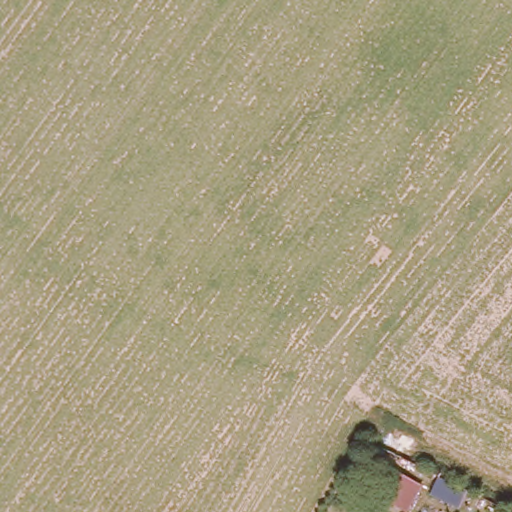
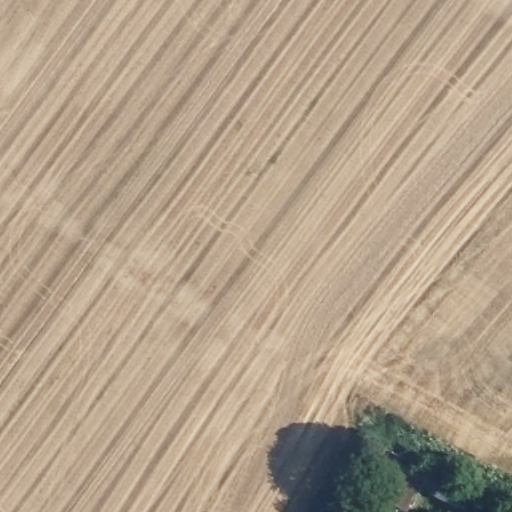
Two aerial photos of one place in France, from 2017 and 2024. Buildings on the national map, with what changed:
unchanged [(358,447),(370,456),(360,471),(348,463),(358,447)]
unchanged [(387,455),(422,475),(405,502),(371,482),(387,455)]
unchanged [(463,483),(455,499),(429,485),(437,469),(463,483)]

